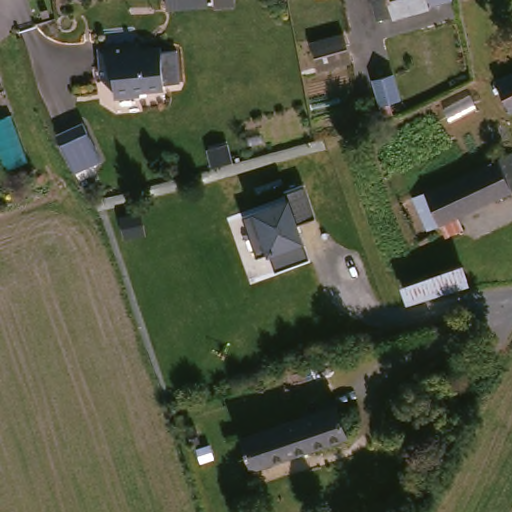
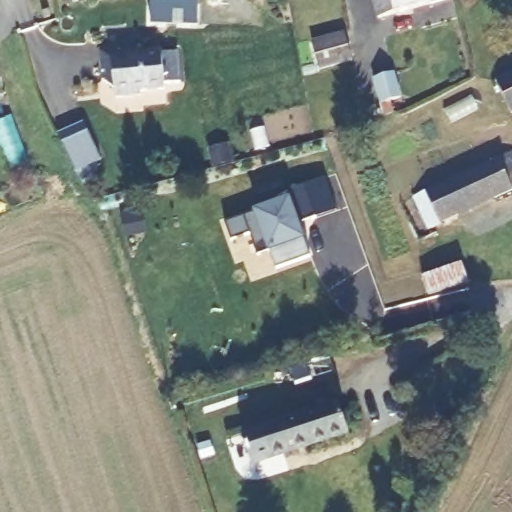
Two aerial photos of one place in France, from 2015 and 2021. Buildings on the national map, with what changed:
new [(151,0),(157,0),(174,1),(174,0),(197,0),(197,2),(196,26),(151,24),(151,0)]
unchanged [(383,13),(380,0),(438,0),(383,13)]
unchanged [(348,29),(355,54),(322,61),(316,37),(348,29)]
unchanged [(140,39),(141,50),(164,47),(170,87),(145,89),(145,94),(106,98),(101,43),(108,41),(140,39)]
unchanged [(502,75),(512,71),(512,98),(502,75)]
unchanged [(393,74),(402,98),(383,105),(373,81),(393,74)]
unchanged [(105,156),(79,169),(76,163),(74,158),(69,148),(61,133),(85,119),(105,156)]
unchanged [(512,153),(512,190),(439,224),(425,191),(512,153)]
unchanged [(245,216),(254,211),(290,197),(287,191),(305,185),(315,217),(299,222),(306,241),(303,242),(308,257),(277,267),(272,253),(269,255),(268,250),(258,254),(245,216)]
unchanged [(450,266),(463,263),(472,291),(423,306),(414,278),(450,266)]
unchanged [(340,400),(351,430),(257,463),(246,432),(340,400)]

